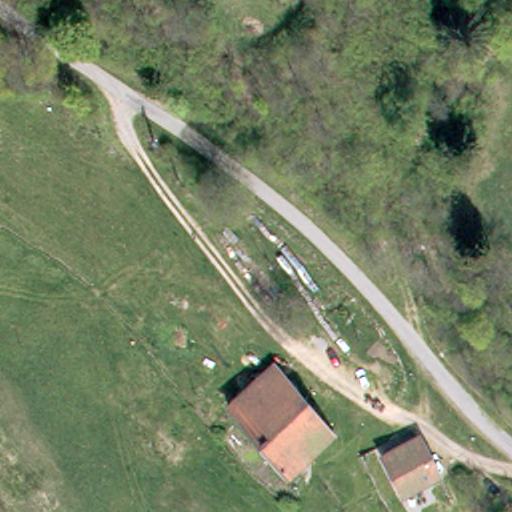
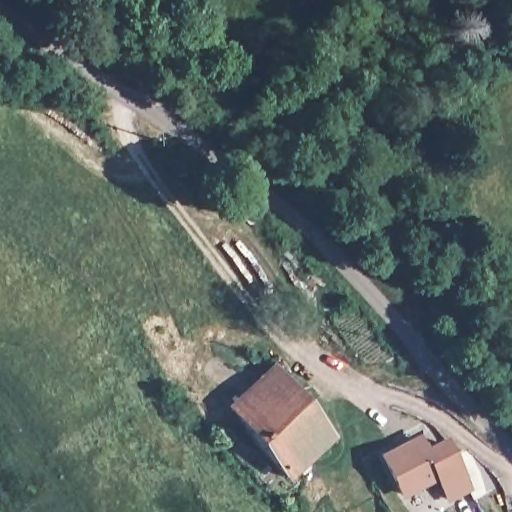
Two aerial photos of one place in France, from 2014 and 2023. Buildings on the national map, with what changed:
unchanged [(272,363),(333,437),(285,479),(223,407),(272,363)]
new [(423,438),(427,447),(447,436),(475,487),(449,502),(436,477),(418,440),(423,438)]
unchanged [(436,477),(400,493),(383,455),(418,440),(436,477)]

